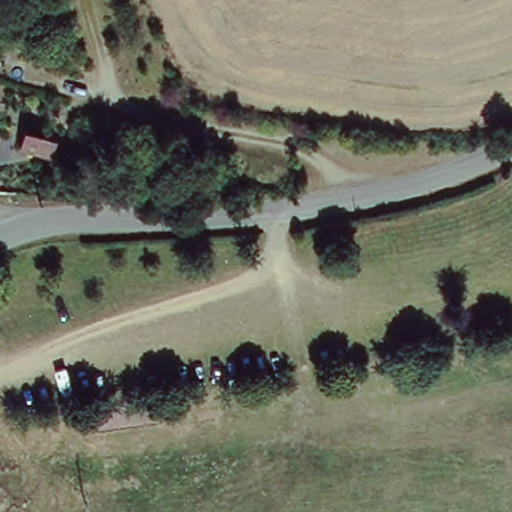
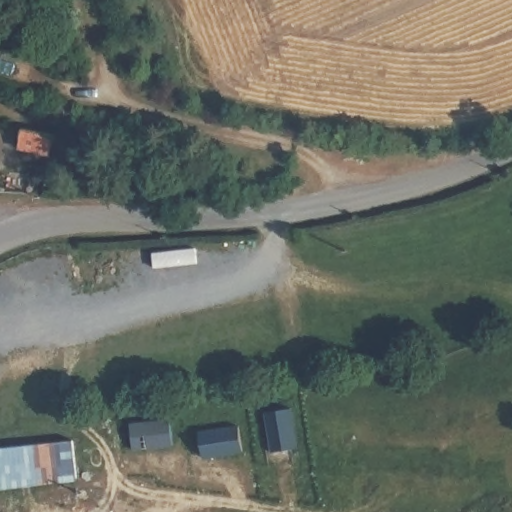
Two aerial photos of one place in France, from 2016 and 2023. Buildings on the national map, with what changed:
unchanged [(22,150),(23,136),(55,138),(55,153),(22,150)]
new [(295,447),(269,452),(265,411),(288,411),(295,447)]
new [(168,421),(172,446),(129,453),(127,425),(168,421)]
new [(240,450),(202,457),(198,432),(236,426),(240,450)]
new [(77,481),(0,494),(0,447),(74,442),(77,481)]

